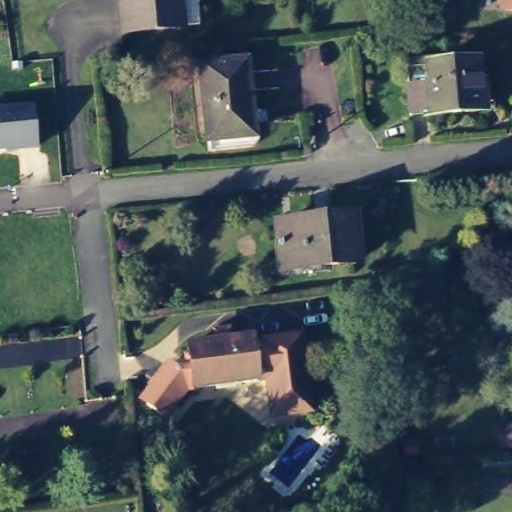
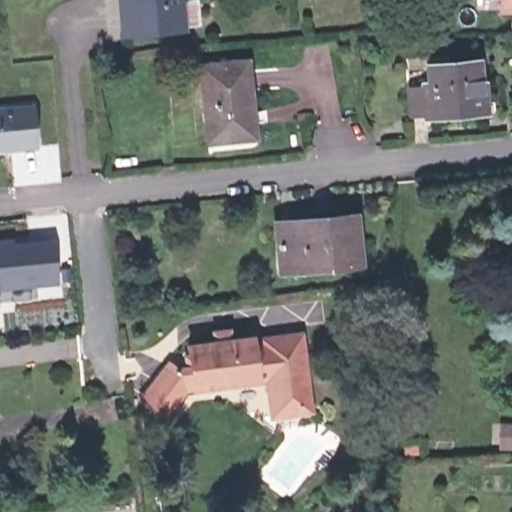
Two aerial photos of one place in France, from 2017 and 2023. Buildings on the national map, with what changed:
unchanged [(180,26),(122,33),(117,0),(178,0),(180,26)]
unchanged [(497,8),(496,0),(512,0),(512,6),(497,8)]
unchanged [(245,51),(253,134),(209,139),(200,56),(245,51)]
unchanged [(403,119),(402,84),(426,81),(425,59),(487,57),(498,115),(403,119)]
unchanged [(39,147),(0,152),(0,107),(35,104),(39,147)]
unchanged [(352,215),(357,253),(288,261),(282,221),(352,215)]
new [(0,288),(0,240),(12,238),(13,243),(52,239),(57,284),(0,288)]
unchanged [(170,339),(295,327),(302,410),(255,415),(252,374),(239,375),(239,383),(181,390),(168,412),(141,397),(172,357),(170,339)]

